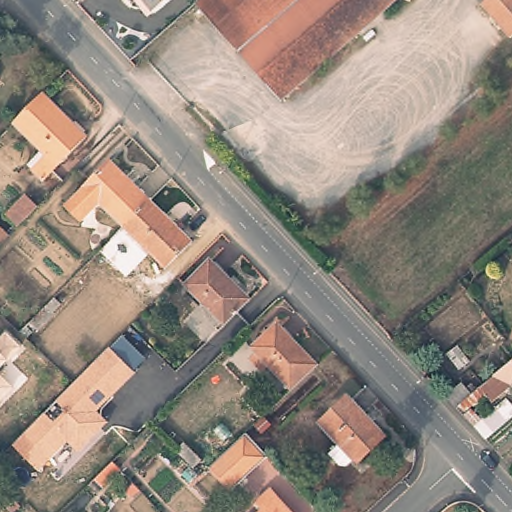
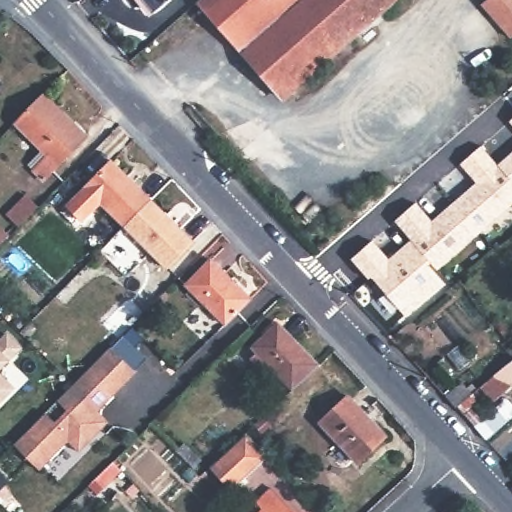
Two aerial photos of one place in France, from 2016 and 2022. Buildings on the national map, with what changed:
unchanged [(141,0),(170,0),(153,14),(141,0)]
unchanged [(200,0),(296,0),(241,47),(200,0)]
unchanged [(241,47),(296,0),(396,0),(284,97),(241,47)]
unchanged [(512,0),(512,36),(511,37),(482,2),(485,0),(512,0)]
unchanged [(90,134),(47,179),(36,169),(51,154),(18,123),(47,93),(90,134)]
new [(508,122),(512,119),(512,127),(508,122)]
new [(512,150),(512,203),(435,270),(429,262),(424,267),(438,285),(401,317),(370,278),(368,280),(350,260),(373,240),(387,258),(410,240),(393,221),(415,202),(431,220),(474,182),(459,165),(482,147),(496,164),(512,150)]
unchanged [(83,192),(89,186),(115,160),(130,175),(153,199),(128,225),(102,199),(96,205),(83,192)]
unchanged [(4,211),(24,192),(38,205),(18,225),(4,211)]
unchanged [(153,199),(195,241),(170,266),(128,225),(153,199)]
unchanged [(0,244),(0,235),(4,240),(0,244)]
unchanged [(211,257),(250,297),(225,323),(185,283),(211,257)]
unchanged [(281,377),(250,347),(276,321),(281,326),(317,363),(291,388),(281,377)]
unchanged [(23,347),(11,360),(0,372),(0,338),(6,332),(23,347)]
unchanged [(101,427),(79,450),(68,440),(39,469),(13,443),(32,425),(73,382),(109,346),(135,371),(112,395),(97,410),(101,413),(108,420),(101,427)]
unchanged [(495,375),(512,361),(512,384),(494,376),(495,375)]
unchanged [(0,403),(0,374),(15,387),(0,403)]
unchanged [(474,392),(494,376),(512,384),(512,391),(495,402),(486,397),(474,408),(481,417),(505,400),(512,406),(512,417),(485,440),(445,395),(464,382),(474,392)]
unchanged [(339,465),(328,452),(338,443),(318,422),(347,395),(366,415),(385,435),(356,462),(352,458),(345,466),(339,465)]
unchanged [(245,432),(267,455),(230,490),(208,467),(245,432)]
unchanged [(263,508),(256,500),(270,488),(293,512),(260,512),(263,508)]

